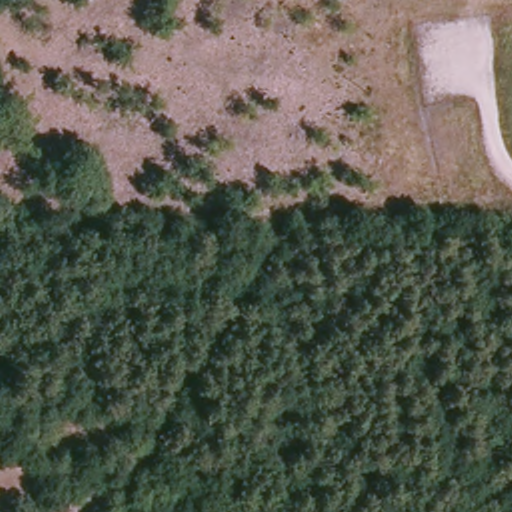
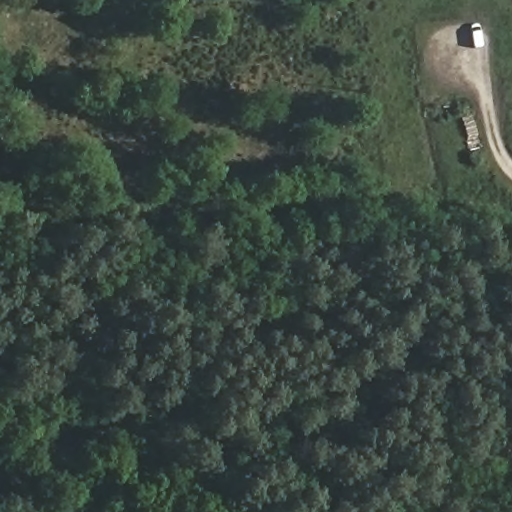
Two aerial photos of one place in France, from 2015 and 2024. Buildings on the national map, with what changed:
[]

